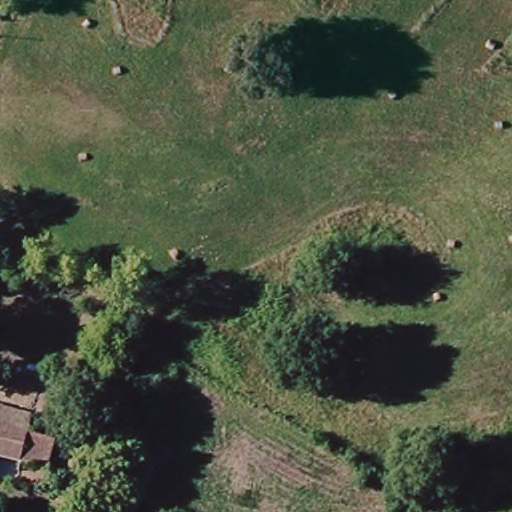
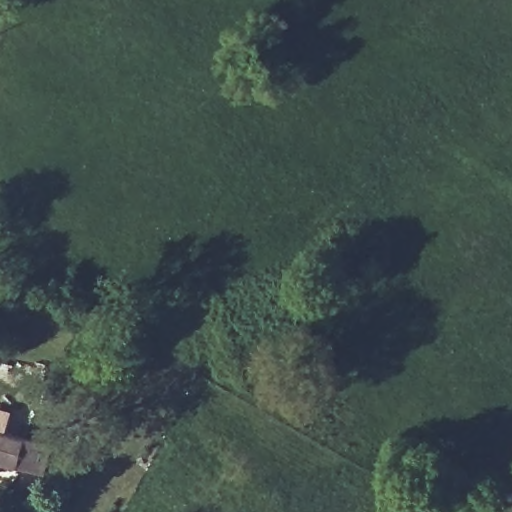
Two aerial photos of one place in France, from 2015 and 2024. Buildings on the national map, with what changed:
unchanged [(0,404),(6,383),(42,393),(37,413),(31,435),(0,428),(0,404)]
unchanged [(30,444),(55,451),(50,468),(19,459),(0,454),(0,428),(31,435),(30,444)]
unchanged [(19,459),(15,480),(0,477),(0,454),(19,459)]

